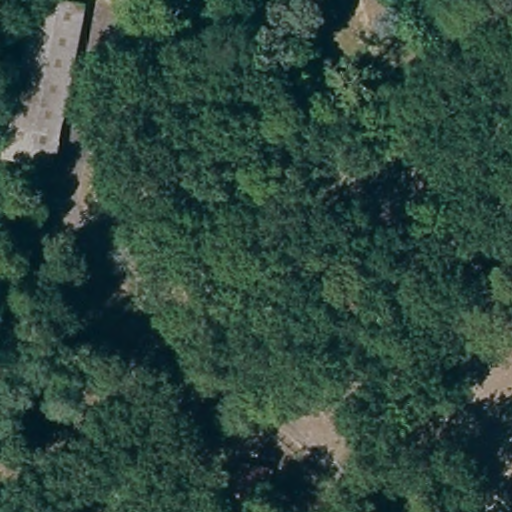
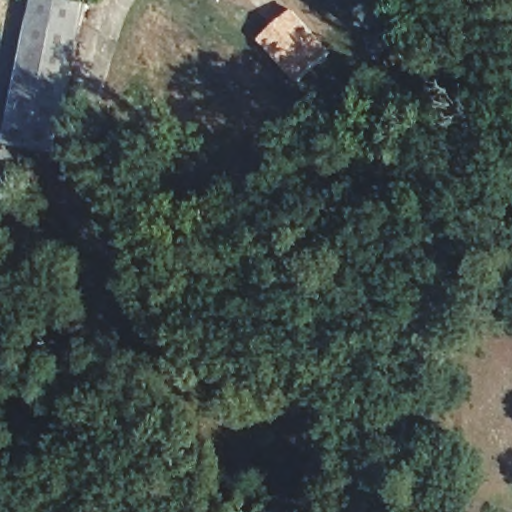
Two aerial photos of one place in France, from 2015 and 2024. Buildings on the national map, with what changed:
unchanged [(38,0),(80,9),(50,154),(5,145),(38,0)]
new [(292,5),(335,50),(295,84),(257,38),(292,5)]
unchanged [(265,462),(289,465),(286,491),(260,488),(265,462)]

